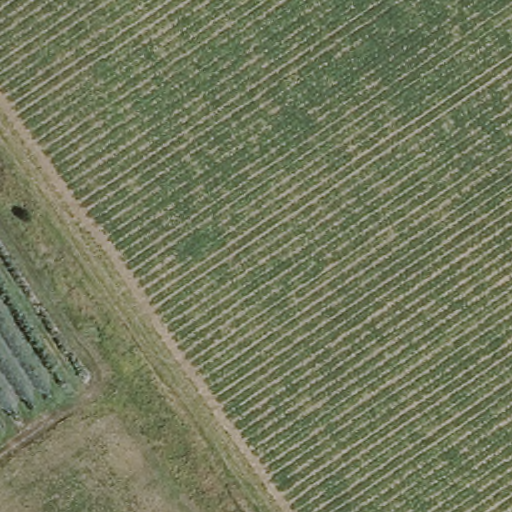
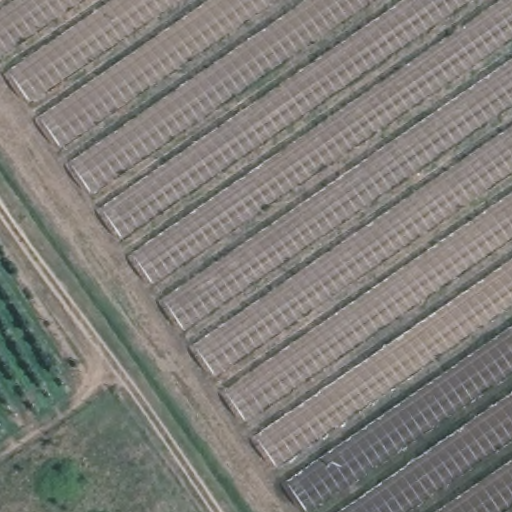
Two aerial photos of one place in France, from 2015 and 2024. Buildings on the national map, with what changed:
new [(0,0),(512,0),(512,512),(303,512),(0,65),(0,0)]

